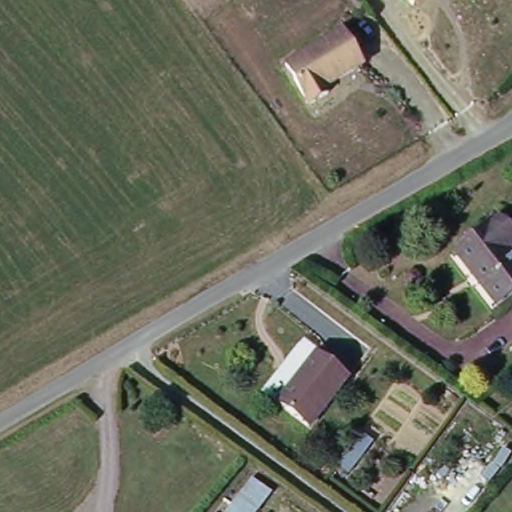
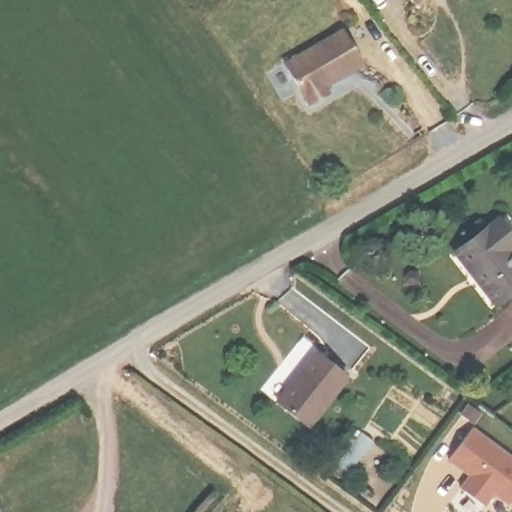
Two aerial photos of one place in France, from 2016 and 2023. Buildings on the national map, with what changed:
unchanged [(412,0),(421,0),(416,4),(412,0)]
unchanged [(367,65),(330,86),(333,90),(318,102),(290,58),(342,24),(367,65)]
unchanged [(512,236),(512,249),(508,252),(512,256),(512,291),(493,304),(456,249),(500,219),(511,235),(512,236)]
unchanged [(317,357),(347,379),(306,430),(275,407),(317,357)]
new [(512,500),(509,504),(492,493),(482,504),(460,489),(469,477),(448,461),(472,429),(512,459),(512,500)]
unchanged [(275,489),(257,512),(230,512),(227,509),(255,477),(275,489)]

